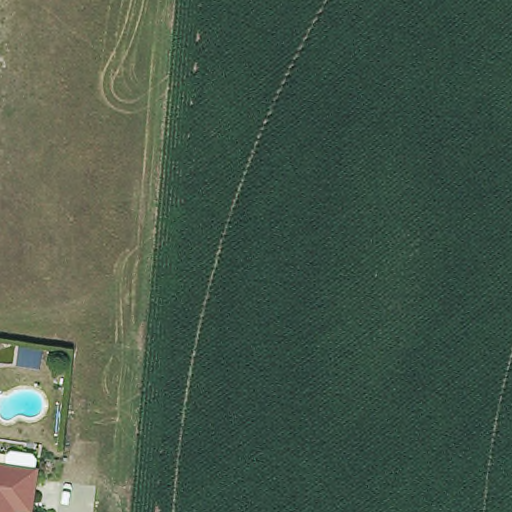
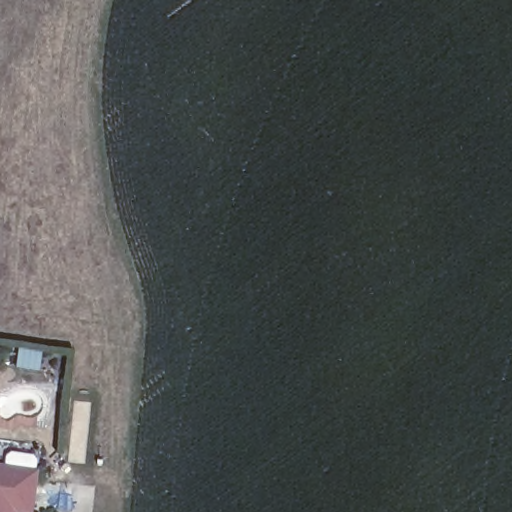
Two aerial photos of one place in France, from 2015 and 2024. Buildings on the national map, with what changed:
unchanged [(10,509),(10,512),(0,512),(0,466),(10,467),(32,470),(30,481),(26,511),(10,509)]

